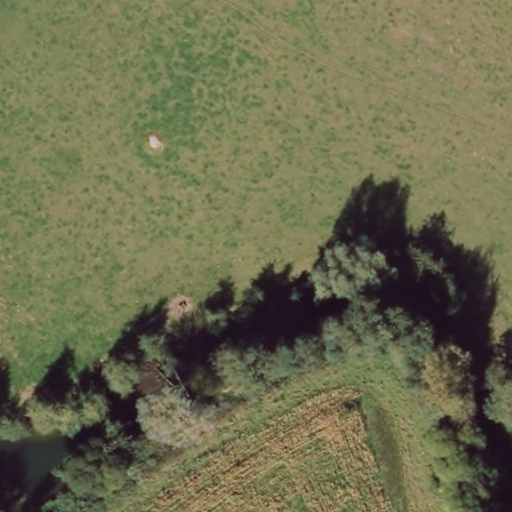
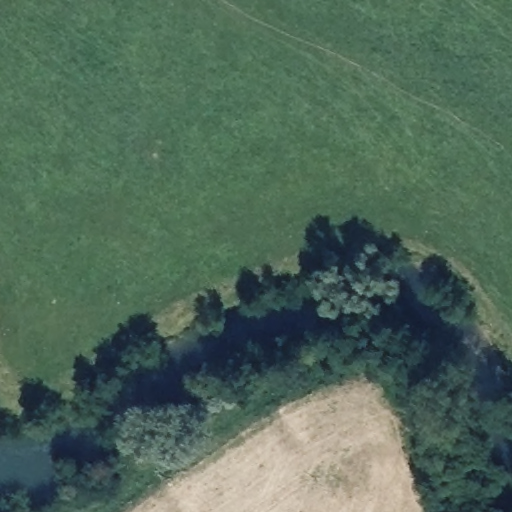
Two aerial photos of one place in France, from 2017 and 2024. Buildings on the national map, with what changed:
[]

